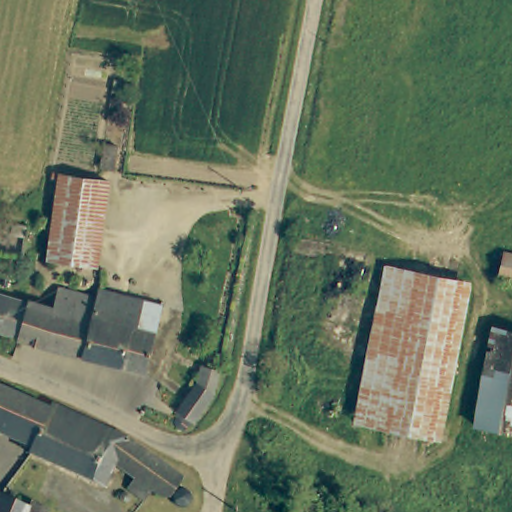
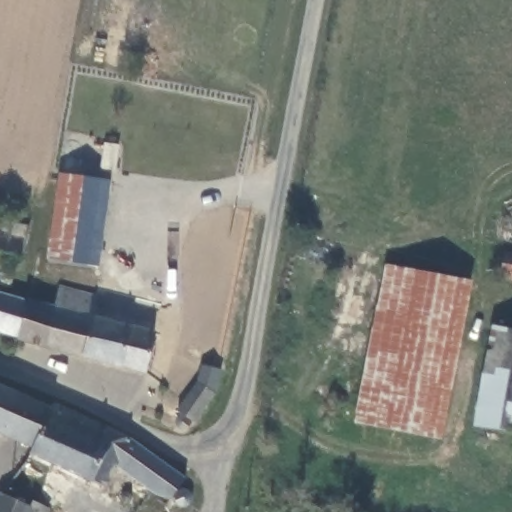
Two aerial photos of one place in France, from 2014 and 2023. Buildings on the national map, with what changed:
unchanged [(105,145),(115,147),(112,169),(101,167),(105,145)]
unchanged [(59,210),(66,175),(102,180),(86,267),(51,261),(59,210)]
unchanged [(500,278),(505,254),(512,256),(512,281),(500,278)]
unchanged [(355,421),(358,407),(384,267),(460,283),(432,439),(355,421)]
unchanged [(22,308),(24,302),(47,308),(52,290),(93,300),(95,292),(132,302),(155,308),(149,335),(140,372),(65,357),(14,338),(15,334),(22,308)]
unchanged [(15,334),(14,338),(13,342),(0,337),(0,300),(22,308),(15,334)]
unchanged [(494,330),(512,334),(512,434),(475,427),(494,330)]
unchanged [(171,411),(192,384),(200,362),(220,370),(216,394),(190,426),(171,411)]
unchanged [(35,450),(0,434),(0,391),(50,412),(35,450)]
unchanged [(35,450),(50,412),(53,405),(102,428),(125,438),(125,437),(185,477),(171,501),(164,501),(155,494),(147,504),(136,496),(135,498),(130,495),(137,487),(116,467),(105,492),(32,455),(35,450)]
unchanged [(14,501),(30,507),(28,512),(0,512),(0,495),(9,498),(14,501)]
unchanged [(175,510),(175,508),(175,507),(175,506),(175,504),(175,503),(175,502),(176,500),(176,499),(177,498),(178,498),(179,497),(180,497),(181,496),(182,496),(183,496),(185,496),(186,496),(187,496),(188,496),(189,496),(190,497),(191,497),(191,498),(192,498),(193,500),(194,500),(194,501),(194,502),(195,503),(195,505),(195,506),(195,507),(195,508),(195,509),(194,510),(194,511),(193,512),(176,512),(176,511),(175,510)]
unchanged [(42,512),(28,512),(30,507),(42,512)]

